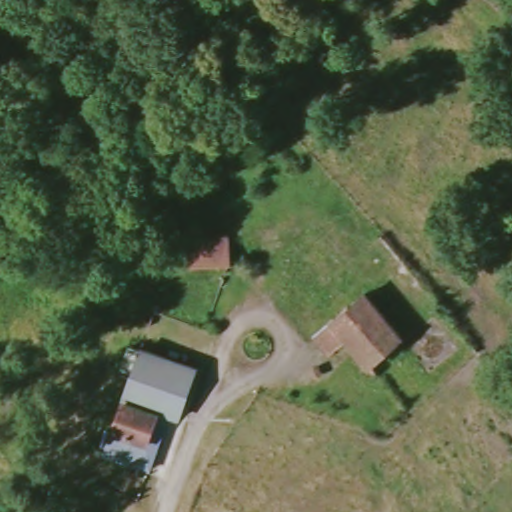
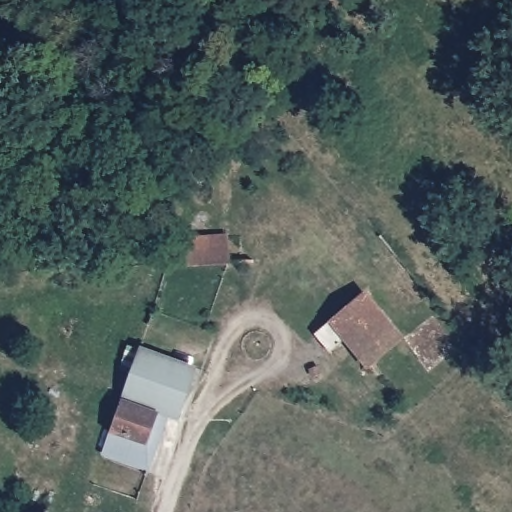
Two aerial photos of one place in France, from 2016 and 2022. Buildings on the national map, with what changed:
unchanged [(185,236),(228,233),(229,264),(185,266),(185,236)]
unchanged [(401,333),(364,366),(342,340),(327,352),(311,334),(363,291),(401,333)]
unchanged [(140,350),(195,368),(179,417),(171,418),(154,468),(107,452),(140,350)]

